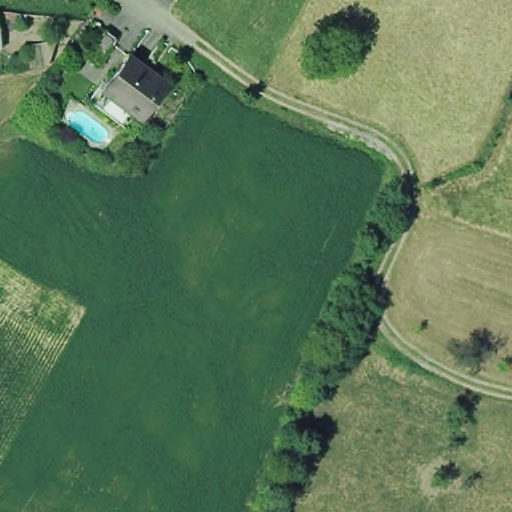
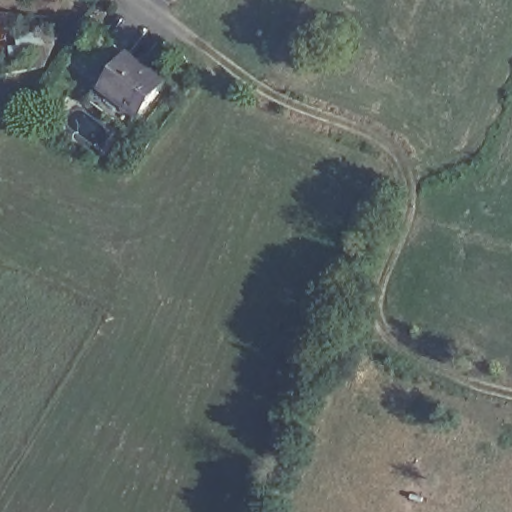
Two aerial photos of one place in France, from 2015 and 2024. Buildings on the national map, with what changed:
unchanged [(88,52),(105,28),(117,35),(100,60),(88,52)]
unchanged [(0,55),(0,35),(2,54),(0,55)]
unchanged [(105,98),(115,85),(139,53),(176,80),(152,113),(142,125),(105,98)]

